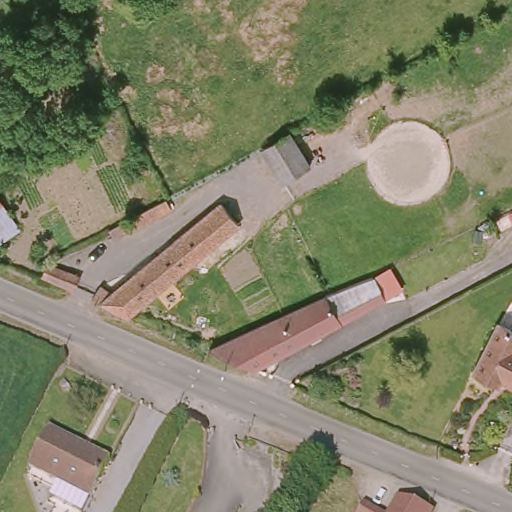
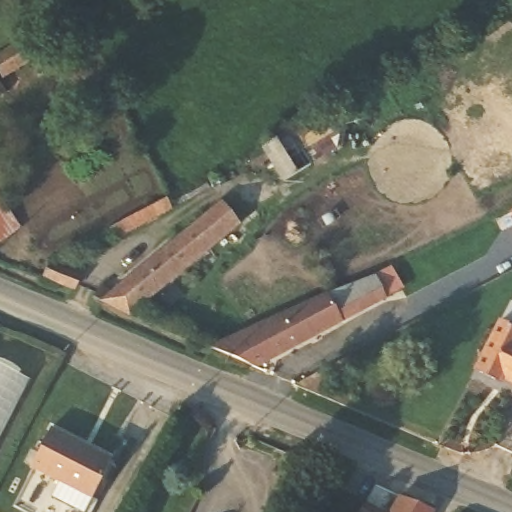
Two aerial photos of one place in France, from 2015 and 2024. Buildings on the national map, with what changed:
unchanged [(289,134),(307,167),(280,183),(262,150),(289,134)]
unchanged [(175,204),(119,237),(113,229),(170,196),(175,204)]
unchanged [(222,255),(205,269),(196,257),(125,312),(86,295),(97,286),(111,293),(224,199),(240,223),(212,244),(222,254),(222,255)]
unchanged [(510,204),(512,203),(512,213),(508,205),(510,204)]
unchanged [(0,244),(0,209),(17,233),(0,244)]
unchanged [(33,264),(54,275),(50,285),(20,272),(33,264)]
unchanged [(388,303),(349,323),(343,326),(264,366),(255,371),(247,368),(219,354),(280,323),(285,329),(338,302),(357,292),(361,290),(375,282),(377,285),(384,296),(388,303)]
unchanged [(512,331),(512,384),(500,379),(497,384),(472,372),(497,323),(512,331)]
new [(0,434),(0,365),(28,380),(0,434)]
unchanged [(52,492),(60,476),(30,461),(49,425),(110,457),(92,493),(84,509),(52,492)]
unchanged [(427,512),(352,512),(363,496),(384,509),(386,511),(400,490),(432,504),(427,512)]

